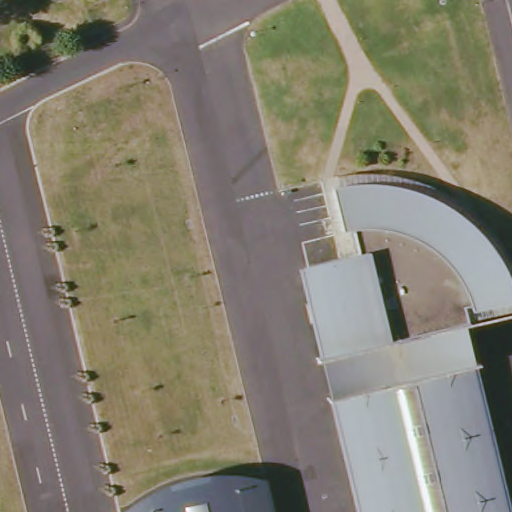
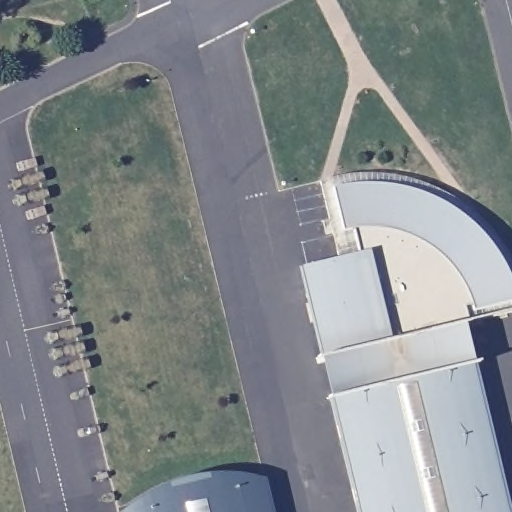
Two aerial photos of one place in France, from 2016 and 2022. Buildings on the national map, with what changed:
unchanged [(323,360),(301,268),(354,257),(349,233),(339,235),(330,192),(339,190),(361,188),(368,188),(388,190),(403,192),(412,195),(424,199),(434,204),(444,210),(453,215),(466,225),(478,237),(486,247),(491,253),(495,260),(499,266),(503,274),(507,283),(511,295),(512,298),(512,306),(464,318),(467,328),(331,358),(323,360)]
unchanged [(467,328),(475,367),(467,368),(340,397),(331,358),(467,328)]
unchanged [(499,512),(366,512),(340,397),(467,368),(499,512)]
unchanged [(144,494),(182,480),(216,475),(241,477),(264,481),(271,512),(118,512),(118,510),(144,494)]

